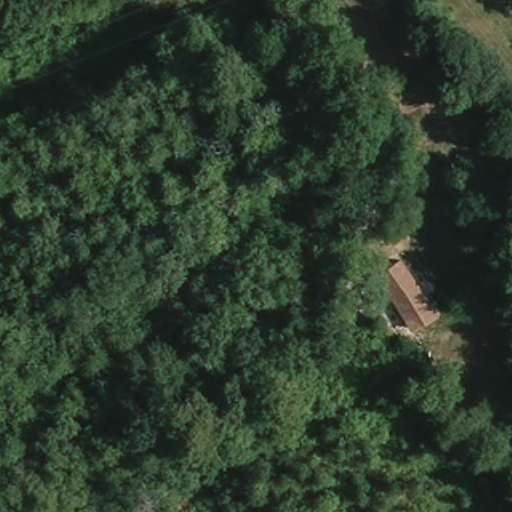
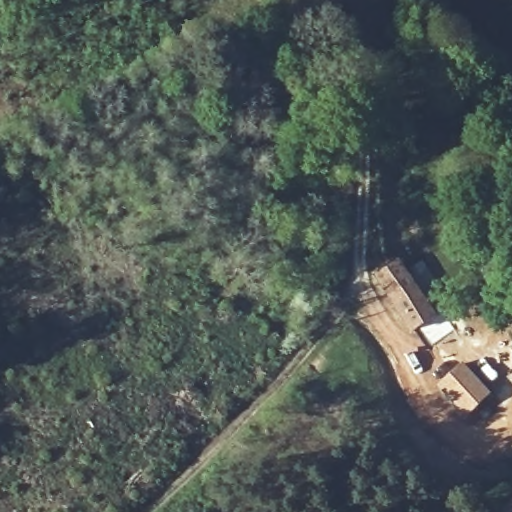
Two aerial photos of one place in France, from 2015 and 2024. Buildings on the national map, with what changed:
unchanged [(413,327),(379,274),(403,259),(437,313),(413,327)]
new [(466,416),(437,386),(463,363),(491,393),(466,416)]

